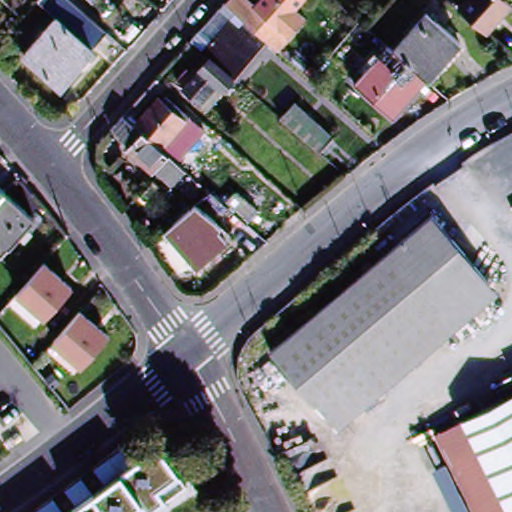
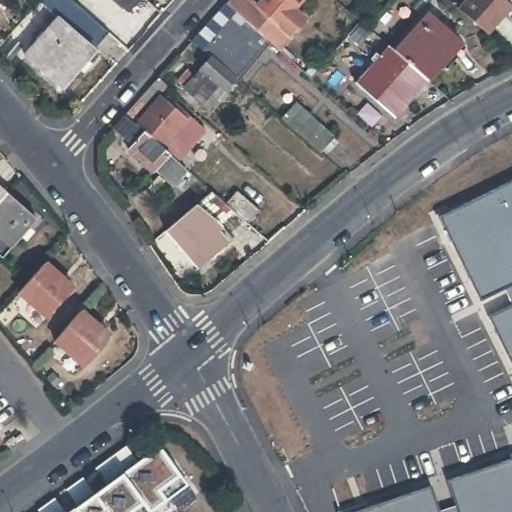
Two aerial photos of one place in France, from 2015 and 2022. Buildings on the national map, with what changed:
unchanged [(97,50),(61,19),(43,3),(45,0),(73,0),(112,34),(97,50)]
unchanged [(222,86),(204,106),(187,90),(176,81),(204,50),(196,42),(229,5),(230,5),(235,0),(254,0),(262,6),(268,0),(308,0),(296,14),(285,26),(296,36),(283,51),(265,36),(257,45),(261,50),(237,78),(239,80),(229,92),(222,86)]
unchanged [(512,2),(512,6),(490,30),(470,12),(463,6),(469,0),(510,0),(512,2)]
unchanged [(430,81),(397,52),(430,15),(464,45),(431,82),(430,81)]
unchanged [(65,88),(29,57),(61,19),(97,50),(65,88)]
unchanged [(397,52),(430,81),(397,117),(360,85),(392,49),(397,52)]
unchanged [(159,173),(157,175),(131,152),(137,146),(117,130),(127,118),(162,80),(171,87),(165,95),(159,95),(133,124),(138,127),(162,100),(188,124),(165,150),(172,157),(189,171),(175,187),(159,173)]
unchanged [(290,122),(303,107),(312,115),(334,135),(322,149),(299,130),(290,122)]
unchanged [(219,191),(230,178),(253,198),(241,211),(219,191)]
unchanged [(10,190),(40,216),(32,225),(36,229),(29,236),(25,233),(15,245),(7,252),(0,246),(0,181),(10,190)]
new [(442,220),(512,183),(512,285),(481,298),(442,220)]
unchanged [(201,200),(221,215),(217,219),(233,237),(201,263),(170,226),(201,200)]
demolished [(313,400),(272,352),(433,215),(470,260),(491,285),(489,302),(452,333),(440,319),(326,415),(313,400)]
unchanged [(31,278),(49,260),(77,285),(49,315),(21,288),(31,278)]
unchanged [(67,327),(84,308),(113,333),(86,363),(58,338),(67,327)]
new [(512,308),(512,359),(492,319),(512,308)]
unchanged [(144,512),(68,512),(158,447),(184,483),(144,512)]
new [(366,509),(430,487),(438,510),(455,505),(447,481),(511,460),(509,454),(512,453),(512,512),(341,512),(365,505),(366,509)]

